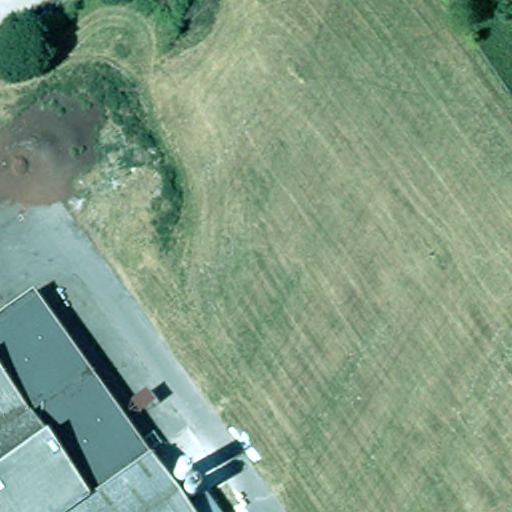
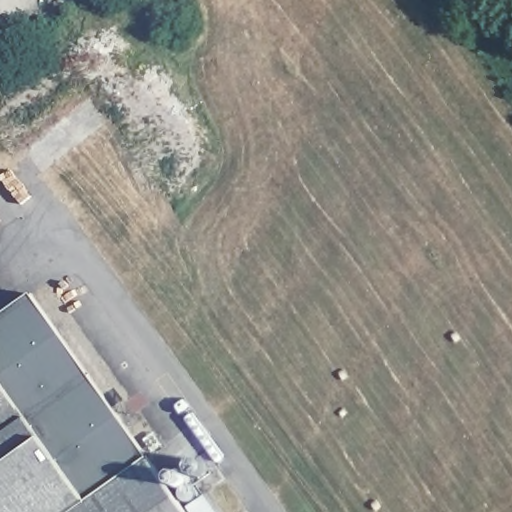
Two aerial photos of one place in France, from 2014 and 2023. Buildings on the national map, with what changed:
unchanged [(124,432),(82,512),(0,512),(0,304),(21,289),(124,432)]
unchanged [(124,432),(182,512),(82,512),(124,432)]

